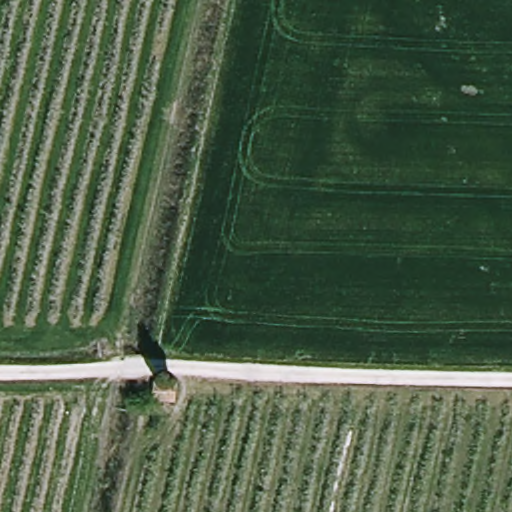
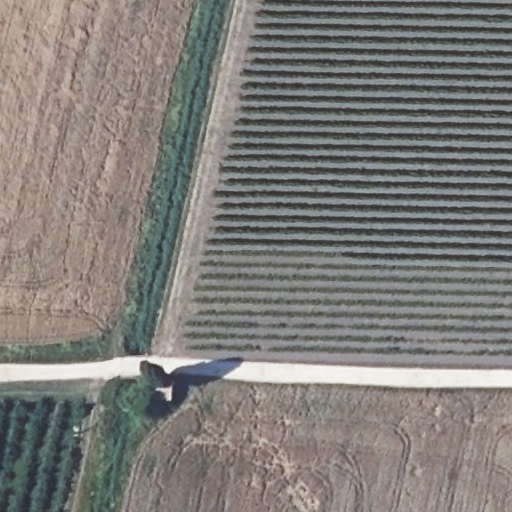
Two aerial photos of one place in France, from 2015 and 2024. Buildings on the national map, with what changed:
unchanged [(174,404),(152,402),(154,384),(176,387),(174,404)]

